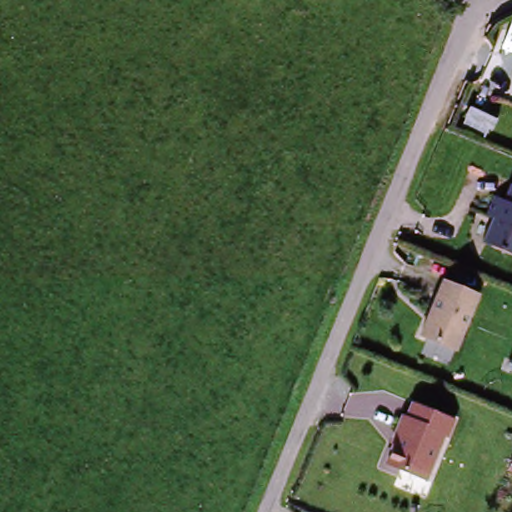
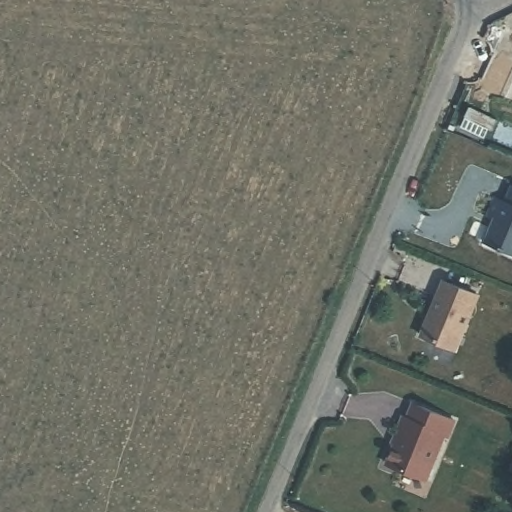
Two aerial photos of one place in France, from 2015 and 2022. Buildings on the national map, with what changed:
unchanged [(505,186),(512,189),(512,258),(484,247),(505,186)]
unchanged [(442,286),(476,300),(455,355),(420,341),(442,286)]
unchanged [(410,404),(456,423),(430,486),(385,465),(410,404)]

